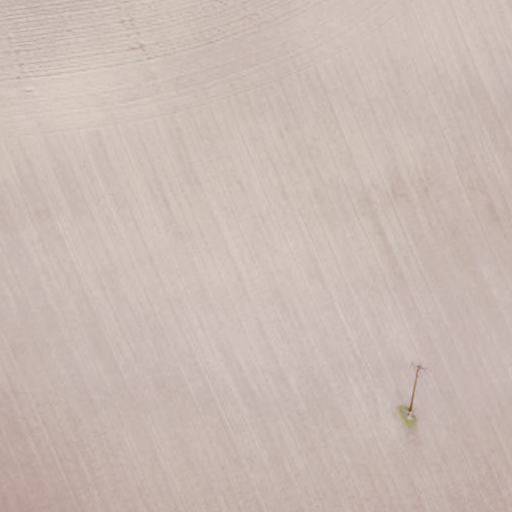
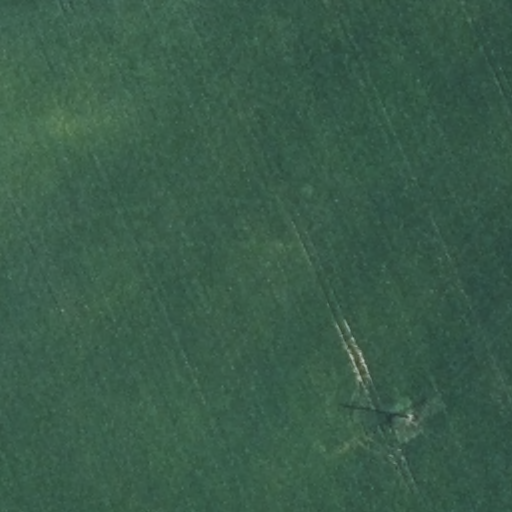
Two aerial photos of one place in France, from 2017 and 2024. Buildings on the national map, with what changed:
[]

